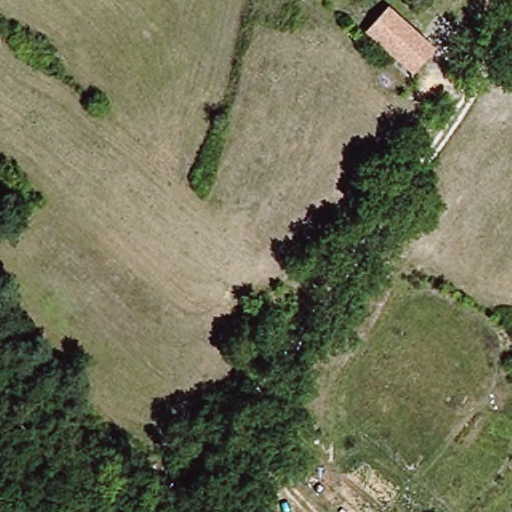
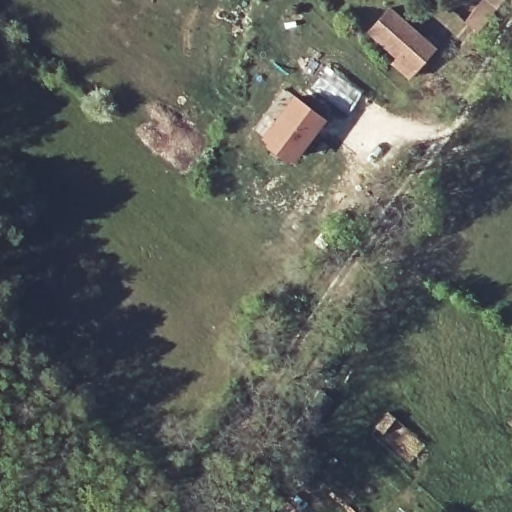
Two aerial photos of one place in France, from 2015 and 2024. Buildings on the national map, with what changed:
unchanged [(498,0),(505,0),(512,5),(512,9),(505,19),(501,24),(487,15),(498,0)]
unchanged [(390,6),(438,49),(412,77),(365,34),(390,6)]
new [(292,94),(325,118),(290,164),(257,138),(292,94)]

